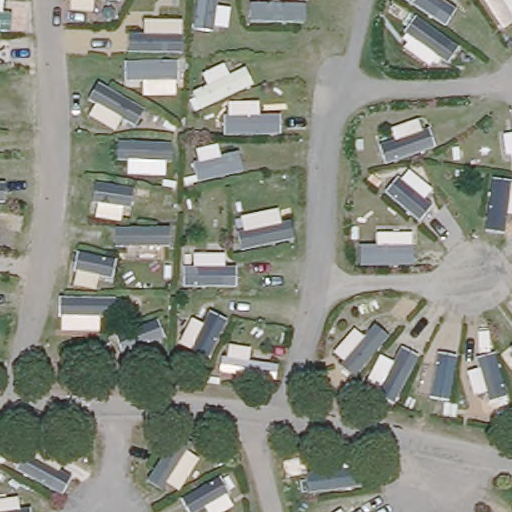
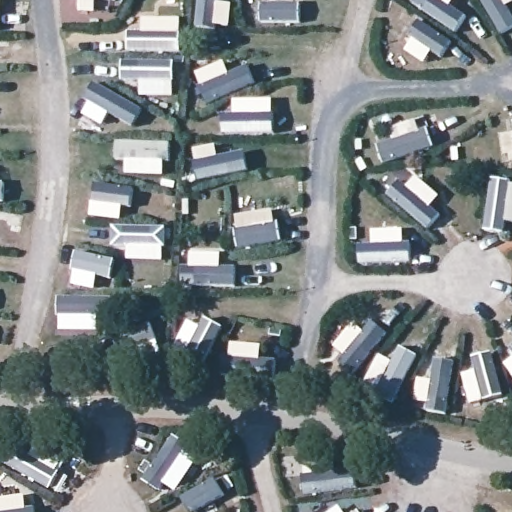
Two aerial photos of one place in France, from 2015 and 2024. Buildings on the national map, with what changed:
[]

